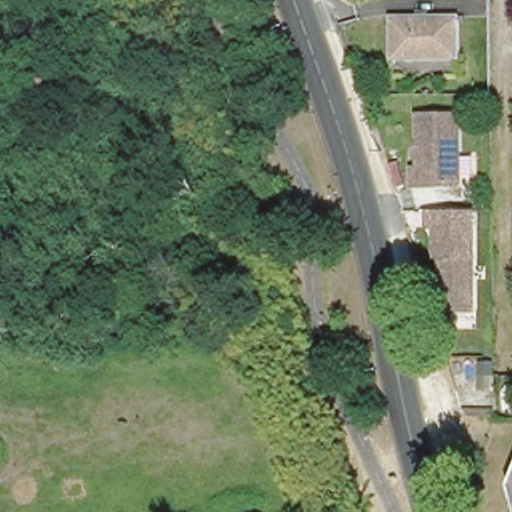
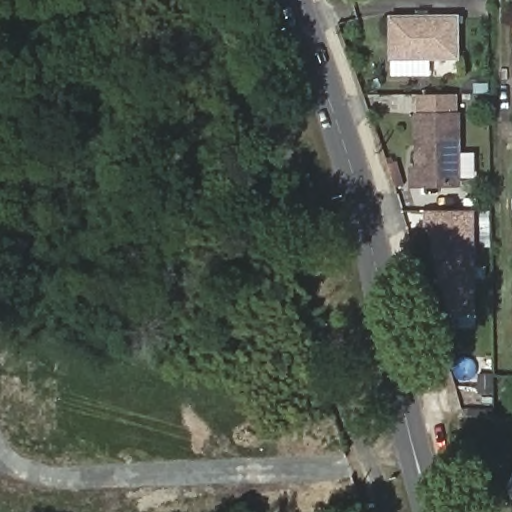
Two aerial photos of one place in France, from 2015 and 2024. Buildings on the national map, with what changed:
unchanged [(451,65),(387,65),(386,26),(451,25),(451,65)]
unchanged [(458,118),(458,188),(412,188),(412,171),(418,171),(418,118),(458,118)]
unchanged [(477,312),(449,312),(427,229),(427,212),(466,211),(477,211),(477,312)]
unchanged [(510,487),(512,481),(512,495),(510,487)]

